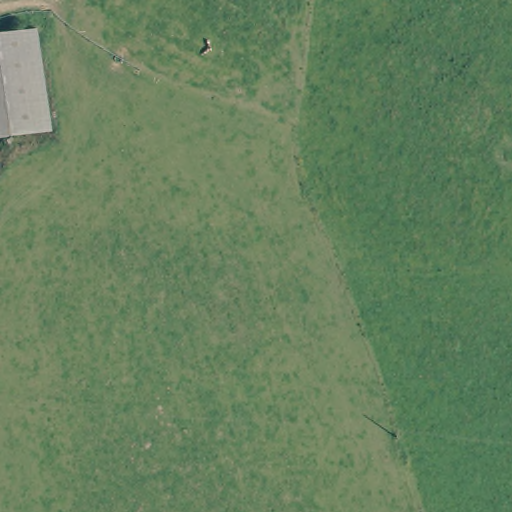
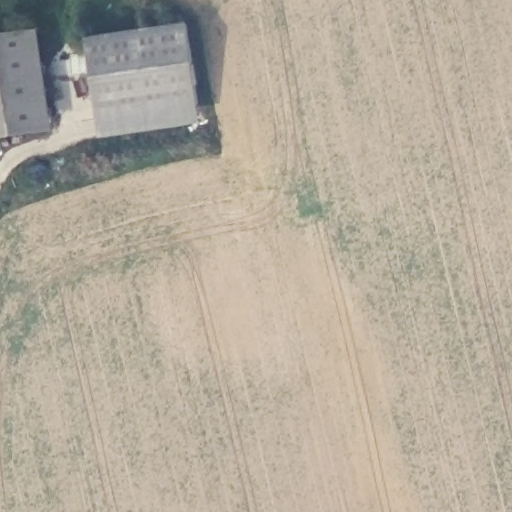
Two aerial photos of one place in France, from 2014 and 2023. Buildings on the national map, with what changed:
new [(197,107),(199,125),(100,139),(98,120),(84,40),(186,24),(197,107)]
unchanged [(49,127),(0,137),(0,37),(39,32),(49,127)]

